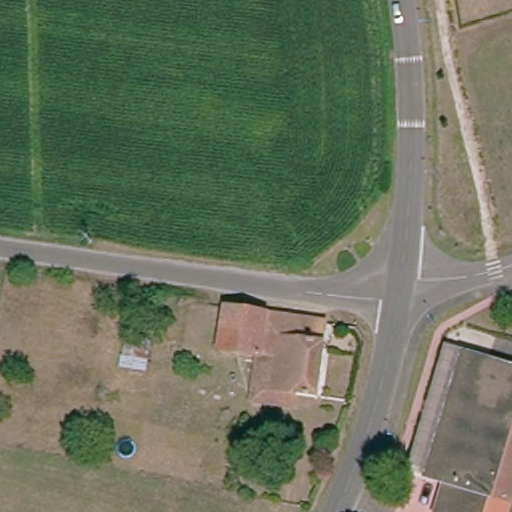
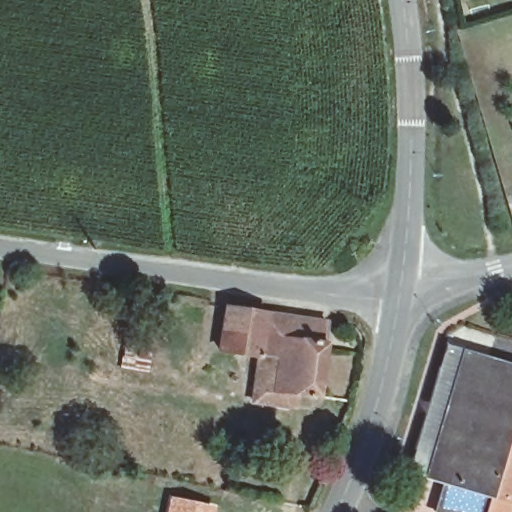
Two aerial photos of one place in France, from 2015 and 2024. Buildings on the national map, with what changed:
unchanged [(257,383),(261,362),(263,352),(223,343),(232,302),(325,320),(332,322),(328,342),(330,342),(319,397),(297,392),(295,405),(255,397),(257,383)]
unchanged [(460,360),(512,374),(512,505),(493,499),(451,486),(455,476),(440,470),(461,387),(452,384),(460,360)]
unchanged [(490,512),(444,512),(451,486),(493,499),(490,512)]
new [(215,506),(214,512),(166,512),(169,495),(215,506)]

